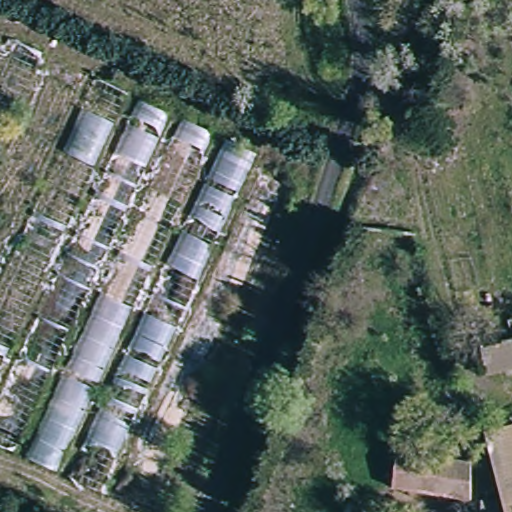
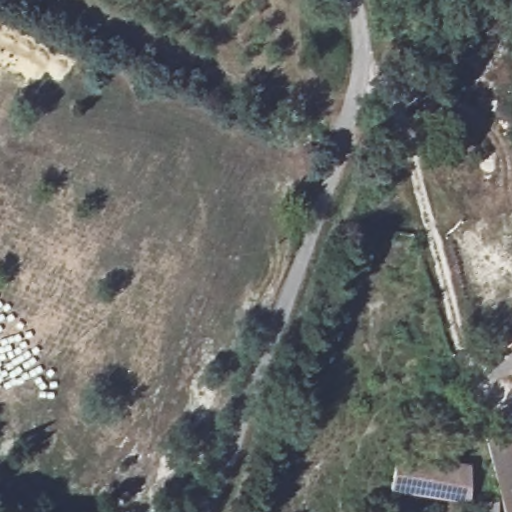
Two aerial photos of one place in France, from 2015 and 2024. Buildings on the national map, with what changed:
demolished [(11,44),(264,159),(255,177),(296,194),(156,512),(144,512),(0,447),(0,66),(11,44)]
demolished [(465,317),(431,160),(465,152),(500,313),(465,317)]
unchanged [(512,369),(482,375),(475,347),(512,338),(512,369)]
unchanged [(512,424),(512,512),(505,512),(485,431),(512,424)]
unchanged [(468,500),(391,489),(397,450),(470,460),(468,500)]

